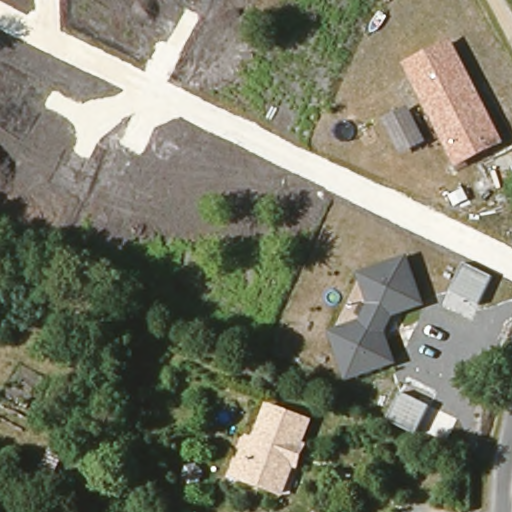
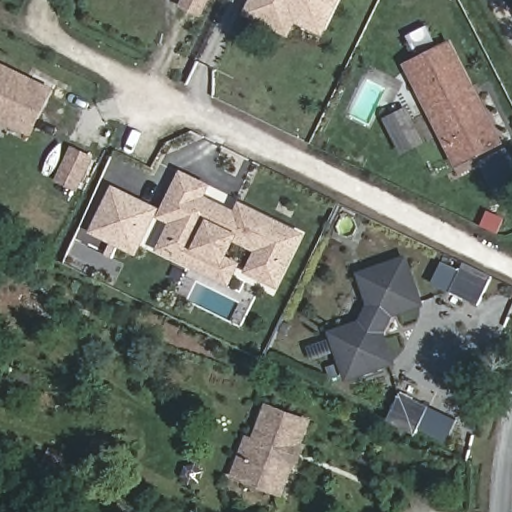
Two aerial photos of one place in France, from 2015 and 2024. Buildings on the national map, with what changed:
new [(207,0),(200,15),(183,7),(186,0),(207,0)]
new [(255,0),(338,0),(323,32),(296,19),(289,33),(249,14),(255,0)]
unchanged [(505,145),(457,167),(405,64),(452,39),(505,145)]
new [(0,120),(0,62),(55,87),(33,136),(0,120)]
unchanged [(399,156),(384,119),(412,106),(427,142),(399,156)]
new [(73,151),(90,160),(76,189),(59,181),(73,151)]
new [(278,290),(245,273),(256,251),(234,241),(227,256),(243,262),(231,287),(157,251),(171,224),(157,217),(182,170),(211,184),(205,196),(235,210),(239,201),(306,233),(278,290)]
new [(122,244),(98,232),(116,194),(153,212),(140,241),(136,250),(122,244)]
unchanged [(359,321),(367,305),(356,272),(408,256),(425,307),(395,316),(387,330),(397,364),(348,382),(330,331),(359,321)]
unchanged [(495,276),(480,307),(452,292),(465,262),(495,276)]
unchanged [(417,435),(386,421),(399,392),(430,406),(417,435)]
unchanged [(297,469),(292,467),(282,492),(240,477),(266,408),(307,423),(300,445),(306,447),(297,469)]
unchanged [(51,487),(37,481),(52,448),(64,453),(51,487)]

